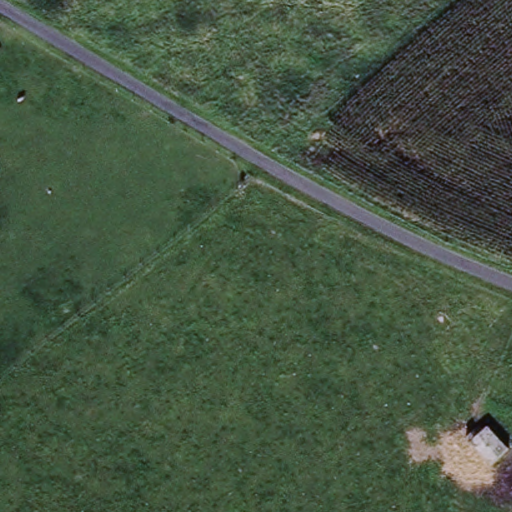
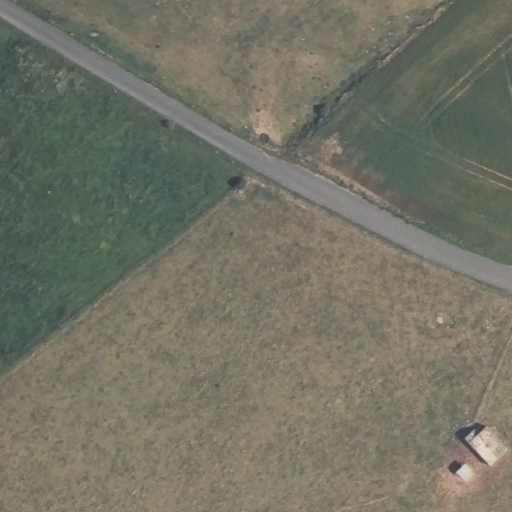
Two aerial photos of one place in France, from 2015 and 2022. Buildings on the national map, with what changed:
unchanged [(468,442),(487,426),(508,451),(489,466),(468,442)]

